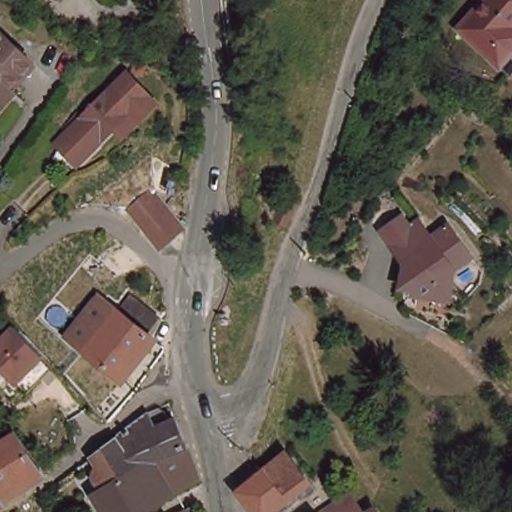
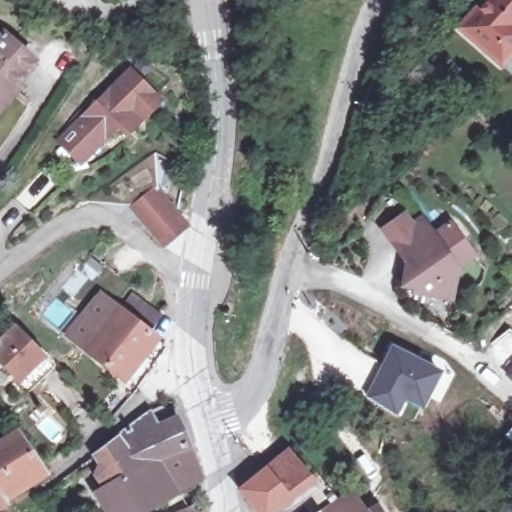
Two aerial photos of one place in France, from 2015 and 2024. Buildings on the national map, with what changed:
unchanged [(59,0),(57,3),(50,0),(59,0)]
unchanged [(449,25),(473,0),(512,0),(512,33),(497,48),(485,62),(474,50),(449,25)]
unchanged [(1,36),(31,64),(8,89),(11,92),(0,105),(0,38),(1,36)]
unchanged [(107,130),(91,150),(86,146),(68,168),(48,151),(94,97),(110,78),(138,101),(126,117),(111,134),(107,130)]
unchanged [(185,224),(165,245),(131,209),(155,190),(166,204),(168,202),(176,194),(186,205),(177,214),(185,224)]
unchanged [(405,263),(410,259),(405,253),(402,254),(390,237),(418,215),(431,232),(447,219),(471,250),(455,263),(451,282),(438,279),(436,292),(415,289),(416,284),(402,282),(405,263)]
unchanged [(110,317),(115,319),(126,302),(153,321),(142,340),(148,344),(117,388),(78,359),(110,317)]
unchanged [(60,346),(92,303),(110,317),(78,359),(60,346)]
unchanged [(0,368),(0,331),(10,321),(50,362),(20,390),(0,368)]
new [(503,368),(485,348),(509,327),(512,330),(512,381),(501,370),(503,368)]
new [(391,342),(442,370),(420,409),(407,402),(398,417),(363,396),(391,342)]
unchanged [(102,480),(105,468),(96,456),(152,413),(158,427),(175,419),(201,484),(149,512),(135,512),(132,508),(127,512),(105,512),(95,497),(108,487),(102,480)]
unchanged [(0,502),(0,460),(27,443),(47,472),(33,481),(0,502)]
unchanged [(283,459),(306,485),(275,512),(245,512),(235,499),(258,479),(283,459)]
unchanged [(335,501),(342,512),(319,512),(335,501)]
unchanged [(195,509),(196,512),(189,512),(195,509)]
unchanged [(370,509),(371,512),(366,512),(370,509)]

